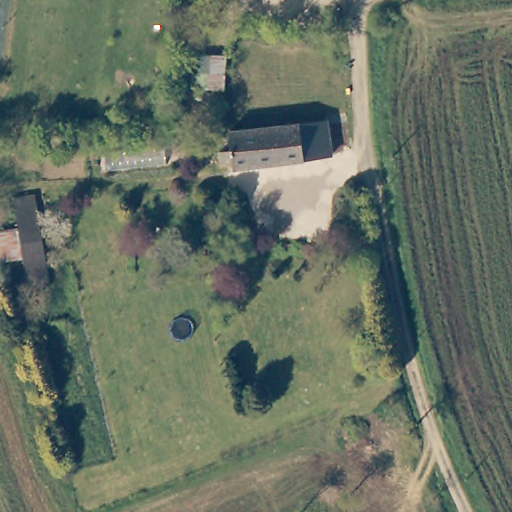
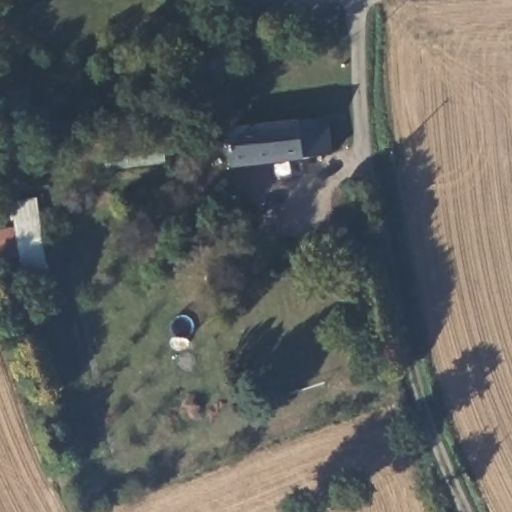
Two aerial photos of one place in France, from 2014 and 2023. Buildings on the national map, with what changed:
unchanged [(329,154),(229,169),(229,166),(219,168),(216,152),(227,151),(224,134),(324,120),(329,154)]

